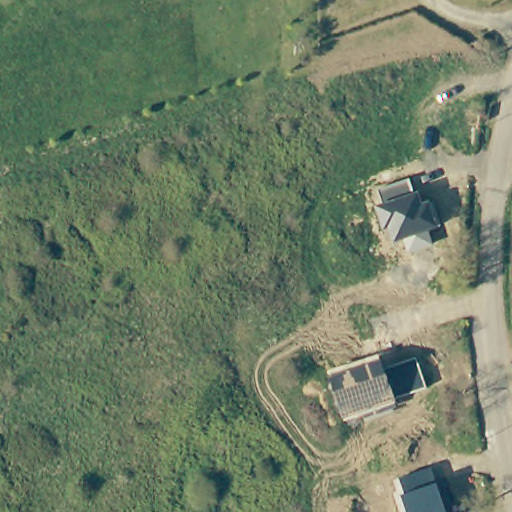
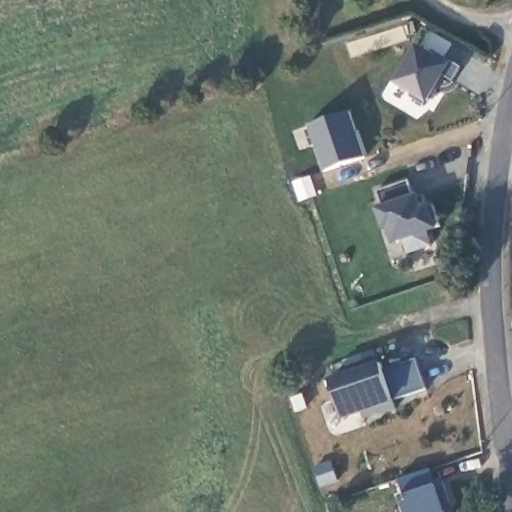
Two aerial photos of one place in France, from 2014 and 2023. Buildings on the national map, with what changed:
new [(417,45),(457,67),(450,81),(443,76),(428,102),(394,82),(417,45)]
new [(347,113),(363,156),(321,172),(306,125),(347,113)]
unchanged [(409,180),(414,195),(418,194),(422,205),(430,203),(438,229),(429,232),(433,246),(406,253),(403,242),(392,246),(387,231),(382,233),(375,208),(382,205),(379,191),(409,180)]
unchanged [(379,356),(383,370),(417,360),(426,390),(395,401),(396,408),(392,410),(393,412),(366,422),(363,417),(343,422),(328,372),(379,356)]
unchanged [(445,512),(405,512),(400,497),(405,495),(400,481),(431,470),(445,512)]

